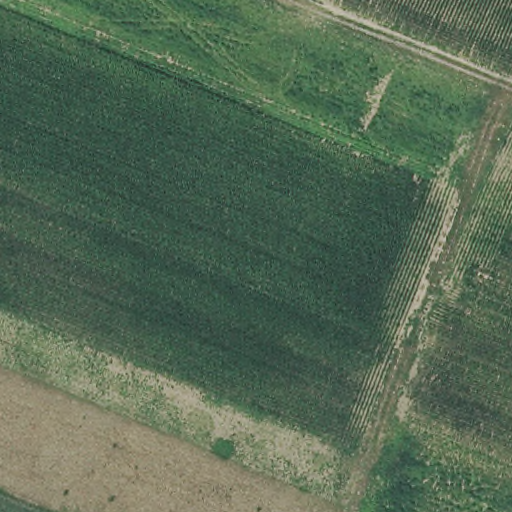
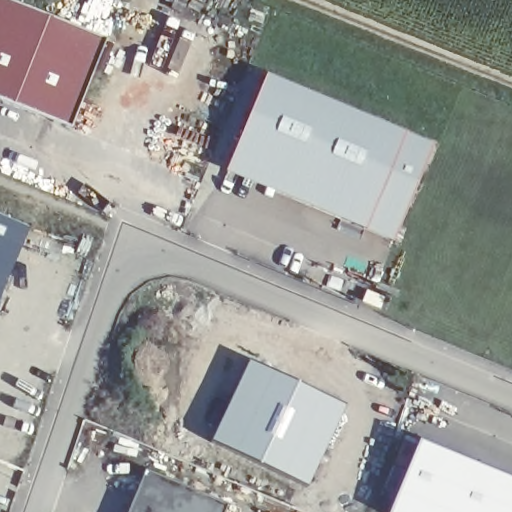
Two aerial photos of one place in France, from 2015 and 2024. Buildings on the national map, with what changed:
new [(0,101),(0,0),(2,0),(104,41),(68,129),(0,101)]
new [(394,242),(224,172),(265,75),(432,145),(394,242)]
new [(0,293),(0,219),(27,230),(0,293)]
new [(249,362),(344,406),(305,489),(210,444),(249,362)]
new [(512,481),(512,512),(389,512),(417,442),(512,481)]
new [(227,503),(223,512),(128,512),(145,471),(227,503)]

